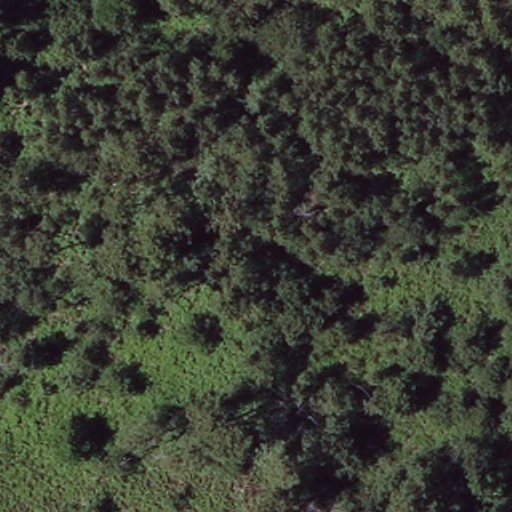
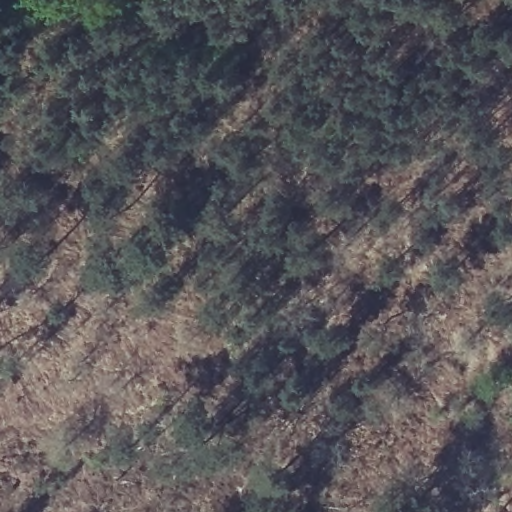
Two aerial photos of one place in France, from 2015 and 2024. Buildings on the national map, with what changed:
[]

